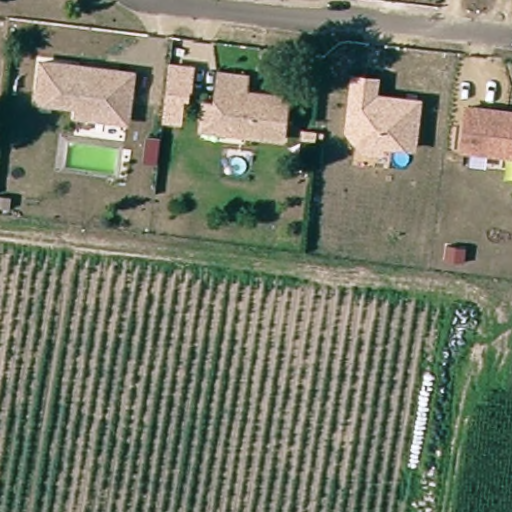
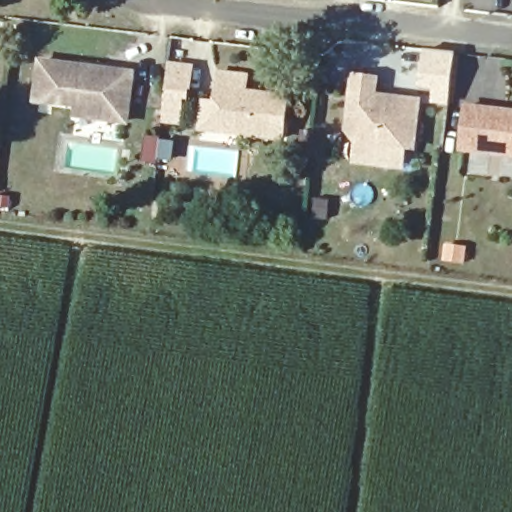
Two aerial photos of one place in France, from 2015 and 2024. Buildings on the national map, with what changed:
new [(420,47),(455,51),(449,106),(429,103),(432,91),(416,88),(420,47)]
unchanged [(144,66),(138,112),(138,114),(46,102),(48,92),(53,54),(144,66)]
unchanged [(194,66),(191,102),(185,100),(183,125),(164,122),(171,63),(194,66)]
unchanged [(224,76),(224,69),(252,72),(251,79),(294,84),(289,125),(229,118),(208,116),(211,89),(222,90),(224,76)]
unchanged [(424,97),(416,152),(384,149),(384,156),(363,154),(346,132),(351,74),(381,77),(379,93),(424,97)]
unchanged [(468,104),(512,109),(512,158),(461,152),(468,104)]
unchanged [(163,149),(160,169),(147,167),(150,145),(163,146),(163,149)]

